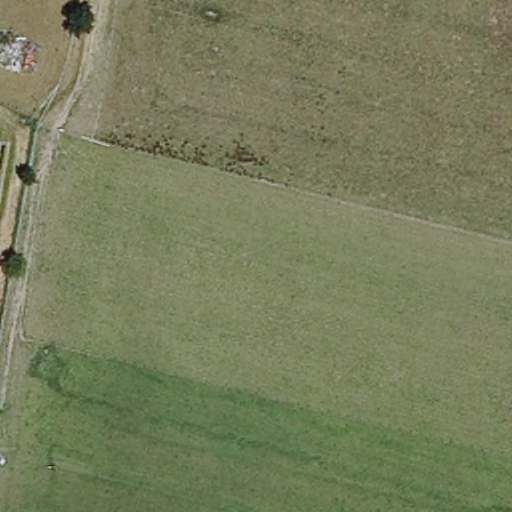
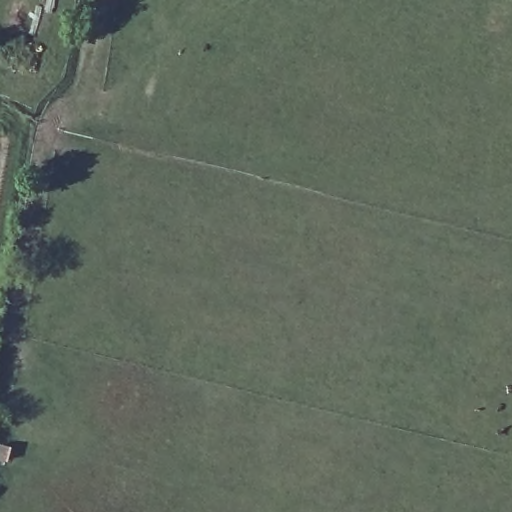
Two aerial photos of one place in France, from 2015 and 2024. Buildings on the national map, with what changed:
[]

